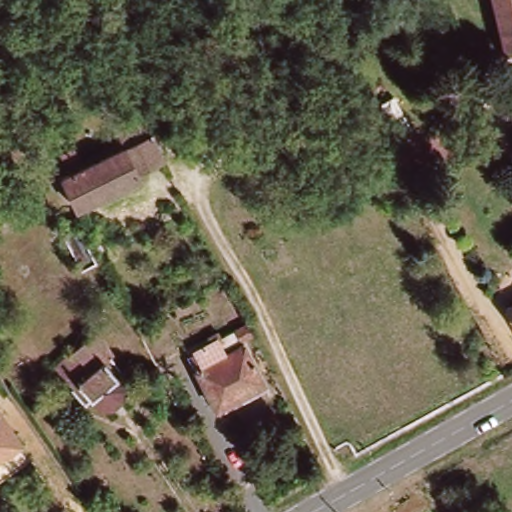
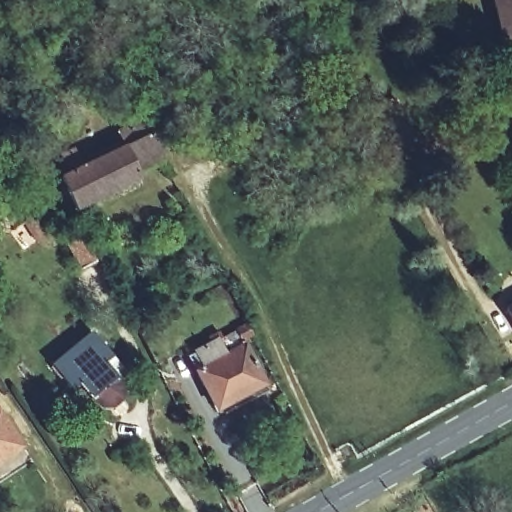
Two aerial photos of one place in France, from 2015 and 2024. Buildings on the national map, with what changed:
unchanged [(494,0),(512,0),(512,46),(502,47),(494,0)]
unchanged [(396,93),(413,127),(397,136),(377,105),(396,93)]
unchanged [(131,174),(135,185),(103,200),(88,161),(106,153),(117,149),(122,157),(146,147),(154,161),(131,174)]
unchanged [(72,214),(51,179),(57,175),(48,160),(69,150),(78,165),(88,161),(103,200),(72,214)]
unchanged [(93,271),(81,277),(62,240),(75,234),(93,271)]
unchanged [(512,324),(504,309),(512,305),(512,324)]
unchanged [(220,356),(213,343),(245,327),(251,340),(220,356)]
unchanged [(72,384),(53,365),(94,335),(110,356),(99,363),(125,392),(100,418),(72,384)]
unchanged [(262,390),(215,413),(196,375),(243,351),(262,390)]
unchanged [(1,417),(0,419),(0,416),(1,417)]
unchanged [(1,417),(25,457),(0,473),(0,419),(1,417)]

